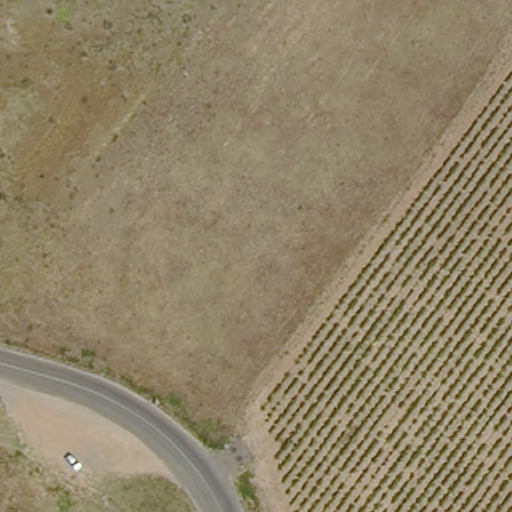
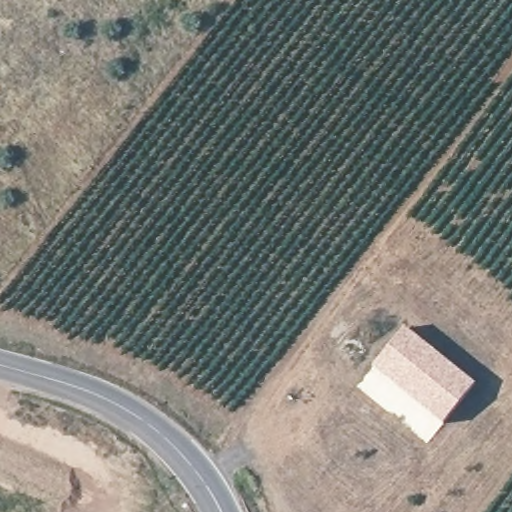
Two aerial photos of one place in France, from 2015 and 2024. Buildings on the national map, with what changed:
new [(403,325),(475,383),(441,425),(370,368),(403,325)]

